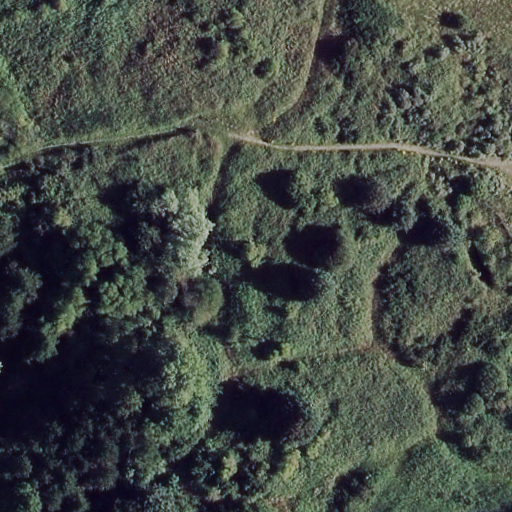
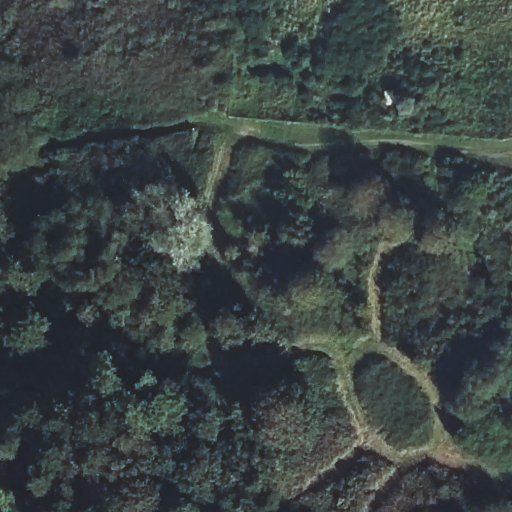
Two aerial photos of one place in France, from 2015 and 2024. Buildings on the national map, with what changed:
unchanged [(44,247),(37,215),(85,203),(96,242),(44,247)]

